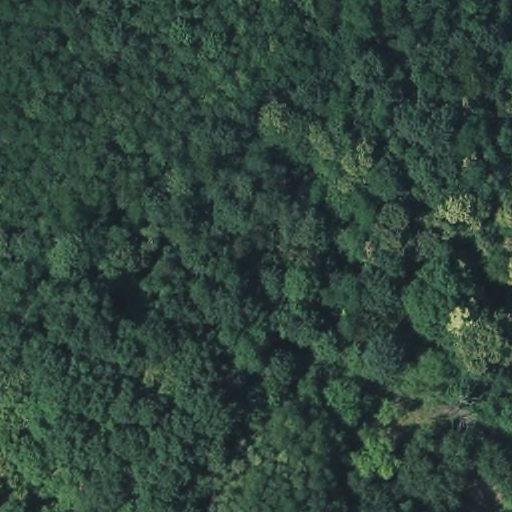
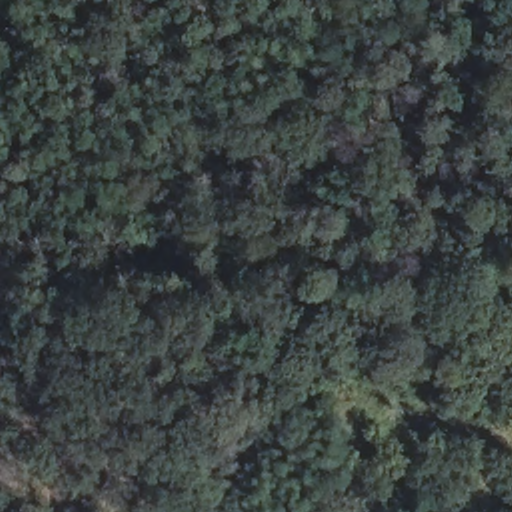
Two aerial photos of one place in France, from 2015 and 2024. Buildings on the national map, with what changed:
unchanged [(200,474),(190,473),(191,460),(201,462),(200,474)]

